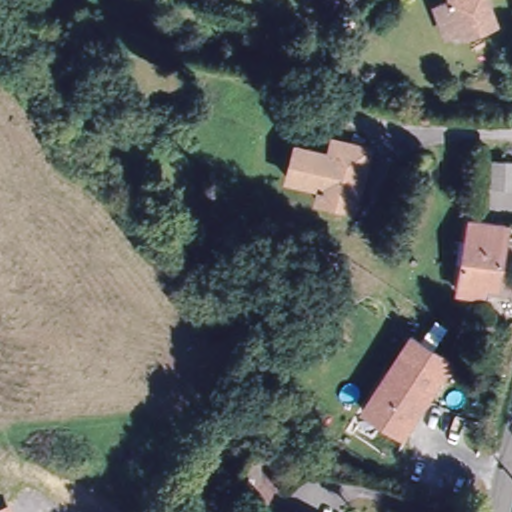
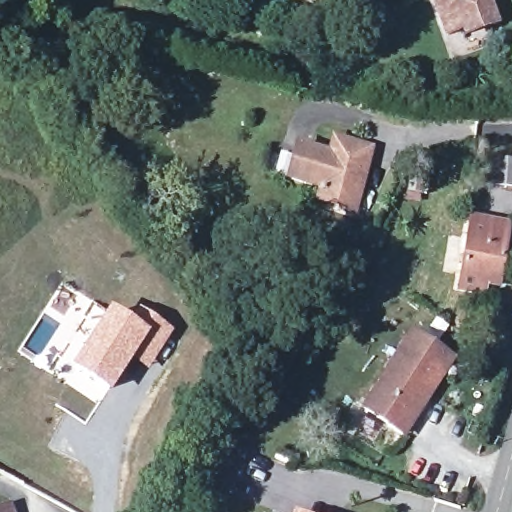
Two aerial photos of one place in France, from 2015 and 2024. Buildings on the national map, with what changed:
unchanged [(497,22),(466,33),(464,28),(450,34),(451,35),(449,36),(438,7),(454,1),(454,0),(489,0),(497,22)]
unchanged [(318,207),(322,194),(289,185),(297,152),(330,161),(335,146),(348,149),(371,155),(366,176),(358,205),(355,216),(342,213),(318,207)]
unchanged [(512,192),(492,190),(494,163),(512,165),(512,192)]
unchanged [(474,295),(458,292),(470,222),(508,229),(497,288),(486,285),(484,297),(474,295)]
new [(109,310),(137,325),(148,333),(132,361),(110,392),(71,366),(109,310)]
new [(148,333),(137,325),(144,314),(172,331),(147,370),(132,361),(148,333)]
unchanged [(404,437),(365,412),(413,337),(451,361),(404,437)]
unchanged [(15,512),(0,512),(0,504),(11,500),(15,512)]

